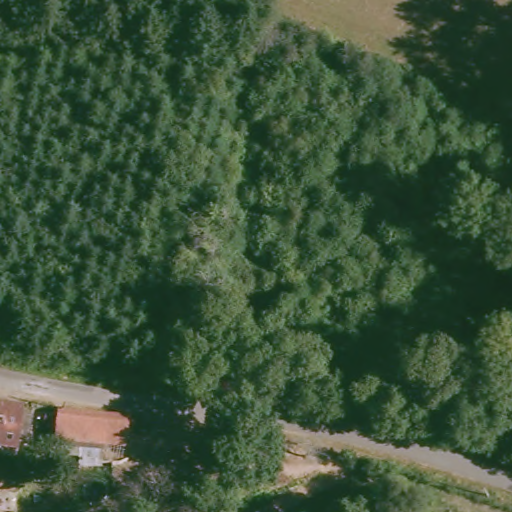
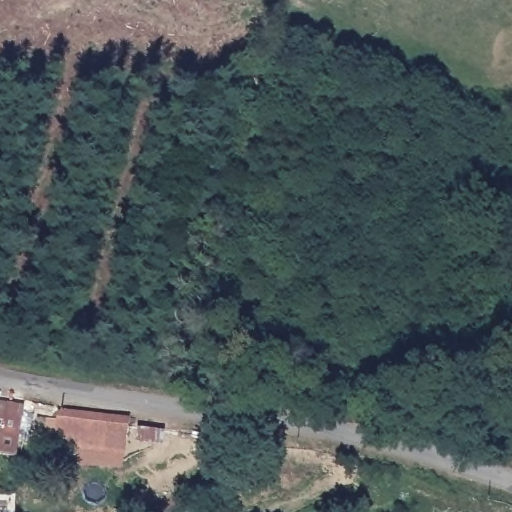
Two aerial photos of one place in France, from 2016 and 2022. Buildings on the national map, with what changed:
unchanged [(0,457),(0,403),(25,407),(17,460),(0,457)]
unchanged [(57,420),(108,427),(131,433),(130,454),(115,453),(111,456),(54,449),(57,420)]
unchanged [(17,497),(15,512),(0,512),(0,496),(17,497)]

